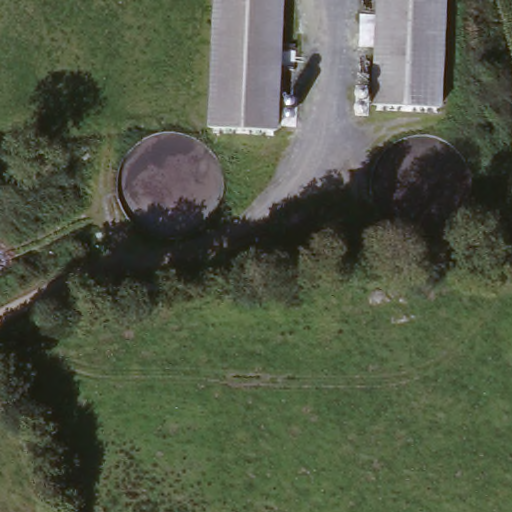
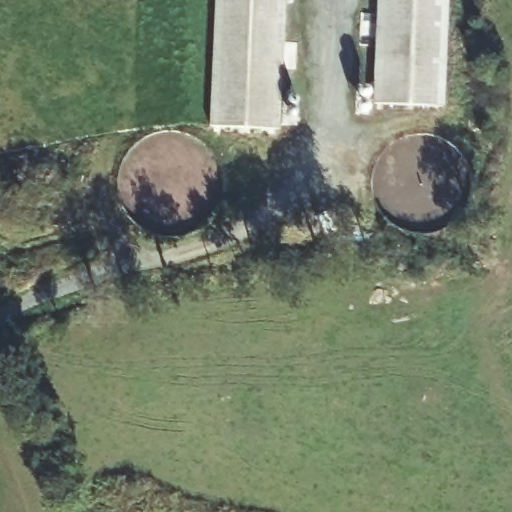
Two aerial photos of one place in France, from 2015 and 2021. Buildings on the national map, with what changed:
unchanged [(216,138),(217,0),(281,0),(280,139),(216,138)]
unchanged [(382,0),(442,0),(440,114),(380,113),(382,0)]

